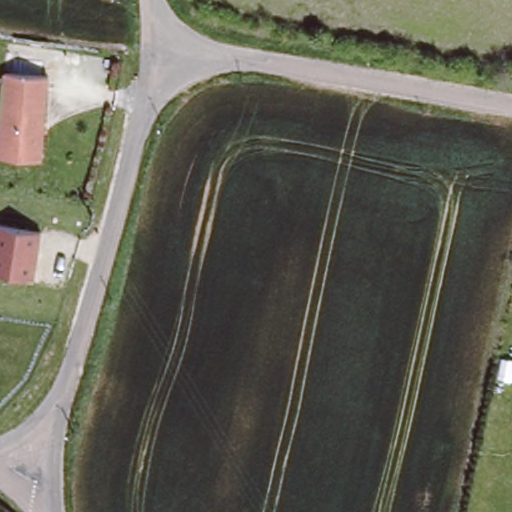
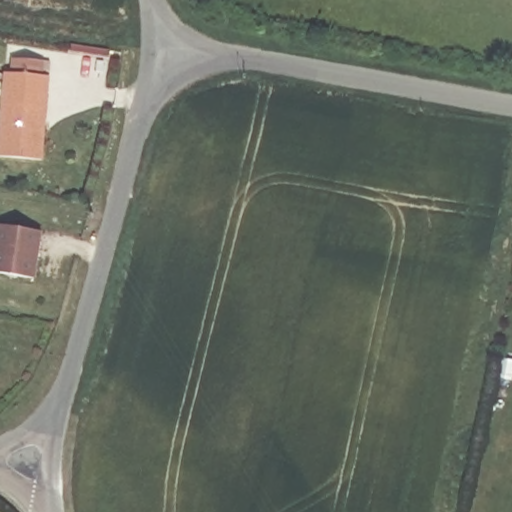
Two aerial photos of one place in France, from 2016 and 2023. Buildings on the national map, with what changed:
unchanged [(53,74),(45,156),(0,153),(0,128),(6,70),(53,74)]
unchanged [(46,233),(40,284),(0,279),(0,225),(46,233)]

